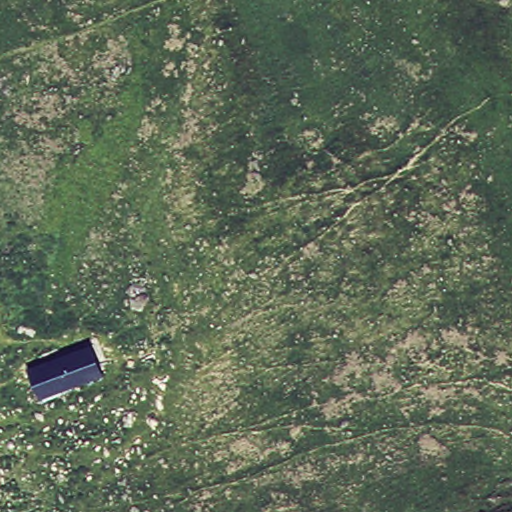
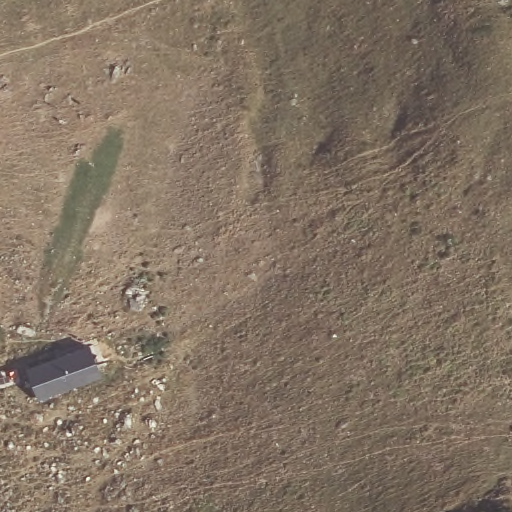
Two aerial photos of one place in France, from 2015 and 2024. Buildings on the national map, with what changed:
unchanged [(102,377),(42,401),(30,371),(91,349),(102,377)]

